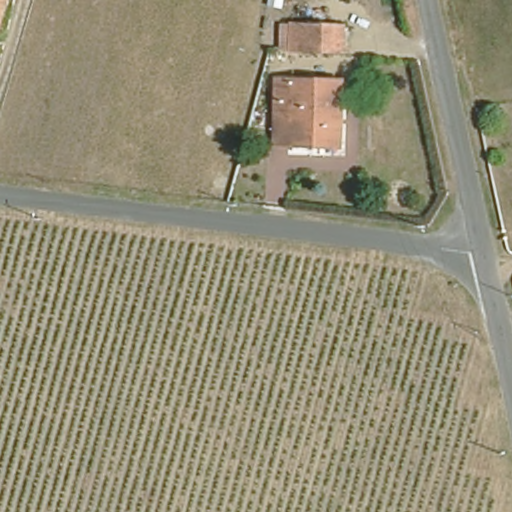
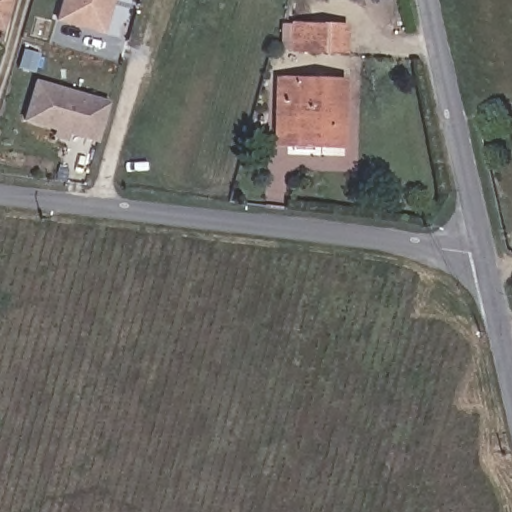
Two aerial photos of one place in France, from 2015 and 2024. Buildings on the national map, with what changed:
unchanged [(0,30),(0,0),(8,0),(0,30)]
new [(57,19),(62,0),(111,0),(103,32),(57,19)]
unchanged [(339,23),(339,49),(287,48),(287,22),(304,22),(339,23)]
unchanged [(275,118),(275,77),(343,79),(342,144),(293,142),(293,132),(275,132),(275,118)]
new [(105,106),(94,145),(21,124),(32,85),(105,106)]

